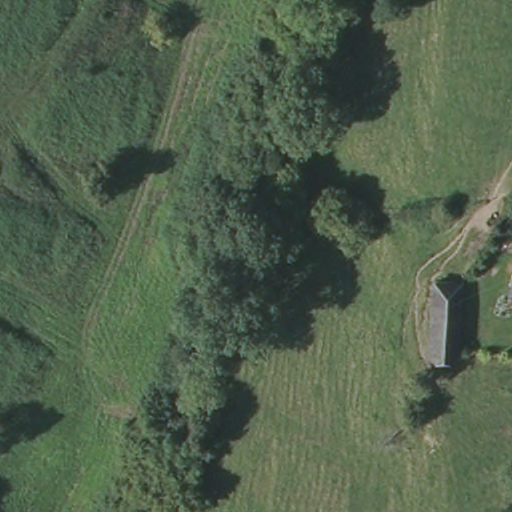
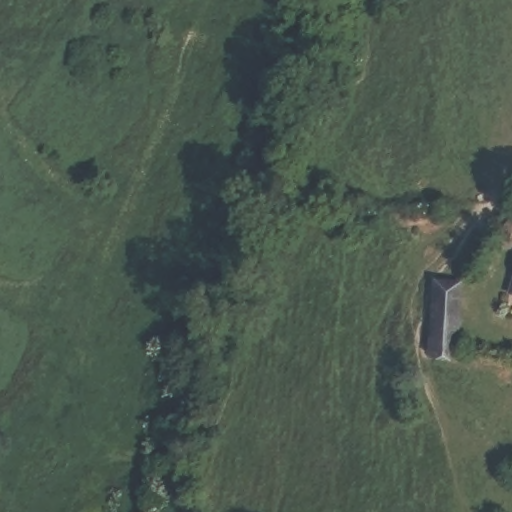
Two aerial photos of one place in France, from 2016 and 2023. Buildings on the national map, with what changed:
unchanged [(461,284),(454,366),(424,366),(433,281),(461,284)]
unchanged [(512,283),(512,299),(508,298),(512,283)]

